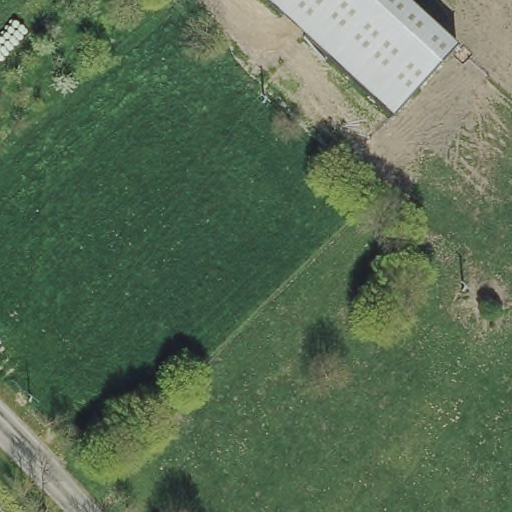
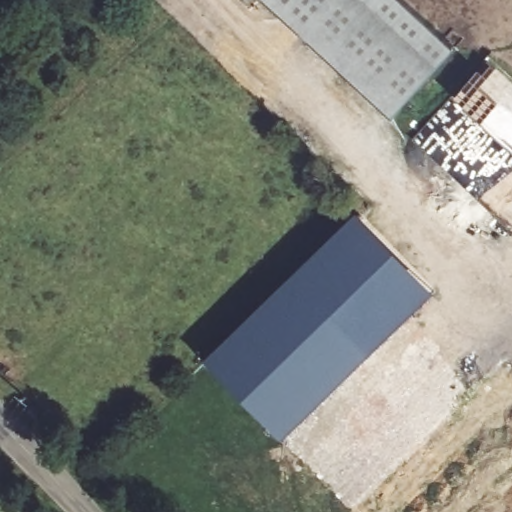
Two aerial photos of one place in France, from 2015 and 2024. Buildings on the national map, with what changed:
unchanged [(459,43),(395,114),(269,0),(411,0),(459,43)]
new [(430,295),(280,443),(206,369),(356,221),(430,295)]

